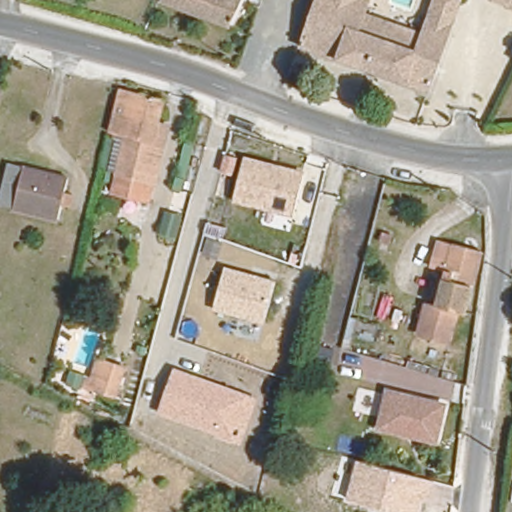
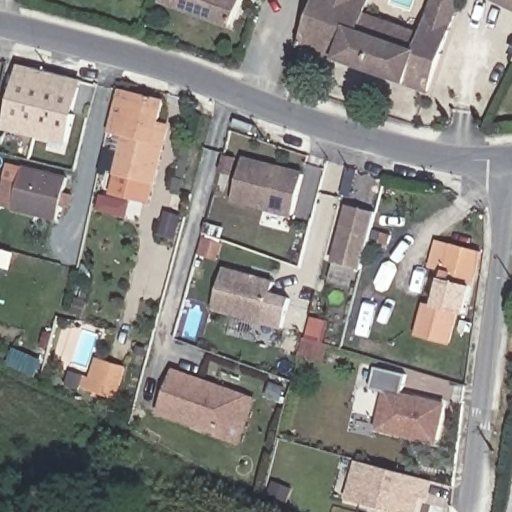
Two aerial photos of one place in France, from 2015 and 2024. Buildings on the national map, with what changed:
unchanged [(240,0),(229,28),(165,3),(166,0),(240,0)]
unchanged [(420,34),(432,0),(467,0),(431,96),(405,86),(405,84),(336,63),(335,63),(300,49),(316,0),(374,0),(367,15),(420,34)]
unchanged [(512,0),(512,7),(498,0),(512,0)]
new [(14,98),(20,71),(22,64),(34,67),(67,76),(80,79),(78,86),(71,113),(74,114),(68,140),(4,125),(10,98),(14,98)]
unchanged [(111,194),(125,134),(112,130),(120,92),(161,100),(156,122),(172,125),(169,135),(152,205),(111,194)]
unchanged [(293,217),(233,201),(244,155),(305,172),(293,217)]
unchanged [(57,215),(0,200),(0,193),(7,160),(66,175),(57,215)]
new [(347,205),(374,212),(360,269),(333,262),(347,205)]
unchanged [(455,225),(472,230),(467,248),(479,250),(464,309),(436,303),(455,225)]
unchanged [(263,324),(214,309),(226,267),(275,281),(263,324)]
unchanged [(458,314),(452,344),(418,337),(424,308),(458,314)]
unchanged [(116,394),(106,391),(94,389),(100,360),(113,363),(123,366),(116,394)]
unchanged [(174,368),(258,398),(242,443),(157,414),(174,368)]
unchanged [(449,407),(441,444),(384,432),(393,394),(449,407)]
unchanged [(422,498),(418,512),(395,512),(346,499),(356,459),(433,481),(429,500),(422,498)]

